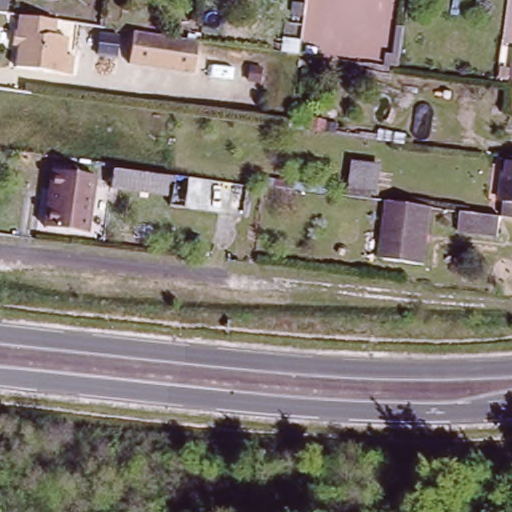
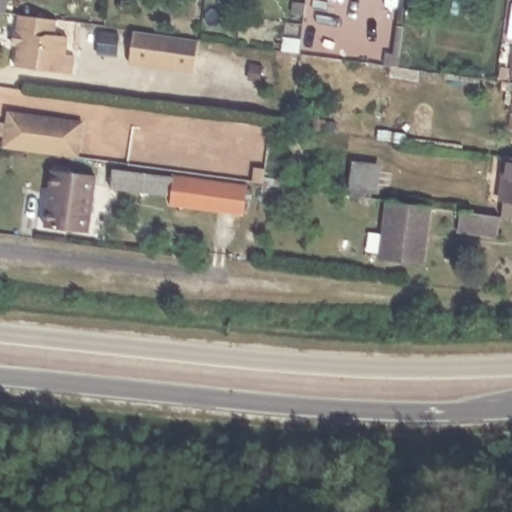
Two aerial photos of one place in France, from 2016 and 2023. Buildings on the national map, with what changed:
unchanged [(7,10),(0,9),(0,0),(9,0),(7,10)]
unchanged [(74,75),(65,74),(17,67),(20,47),(14,46),(15,35),(18,35),(20,17),(56,22),(54,38),(68,40),(67,55),(76,56),(74,75)]
unchanged [(197,38),(192,69),(130,59),(133,30),(197,38)]
unchanged [(507,67),(507,77),(498,76),(499,67),(507,67)]
new [(7,110),(81,120),(76,157),(2,147),(7,110)]
unchanged [(375,162),(372,187),(348,185),(352,160),(375,162)]
unchanged [(512,221),(503,220),(510,160),(512,160),(512,221)]
new [(245,213),(191,206),(172,205),(173,194),(167,194),(107,185),(110,167),(170,175),(195,179),(249,185),(245,213)]
unchanged [(65,228),(45,224),(56,169),(96,175),(87,228),(87,232),(65,228)]
demolished [(181,176),(179,195),(119,186),(122,169),(181,176)]
unchanged [(431,210),(422,268),(378,263),(386,204),(431,210)]
unchanged [(498,220),(497,239),(458,234),(460,214),(498,220)]

